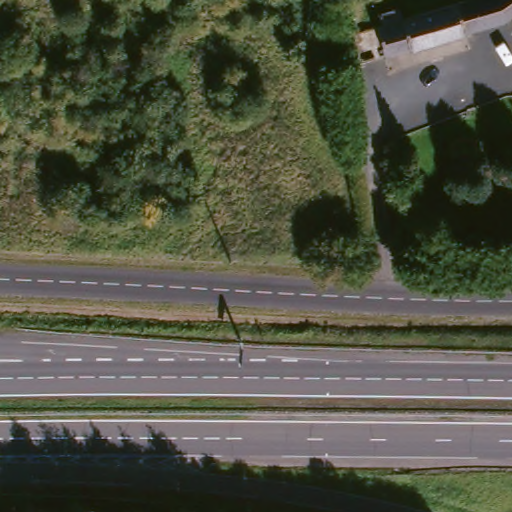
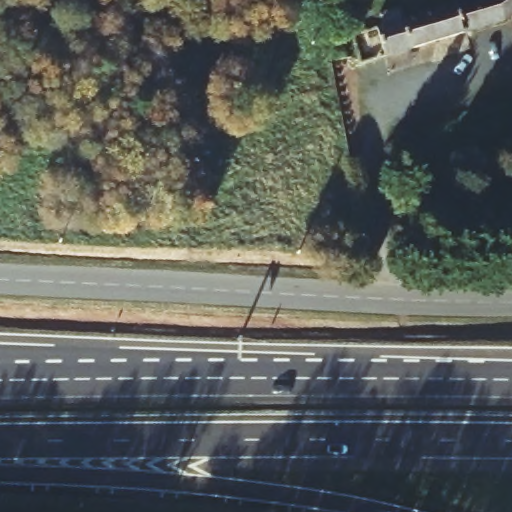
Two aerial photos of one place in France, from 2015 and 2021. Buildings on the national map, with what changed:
unchanged [(509,17),(362,58),(355,29),(455,0),(512,0),(512,16),(509,17)]

